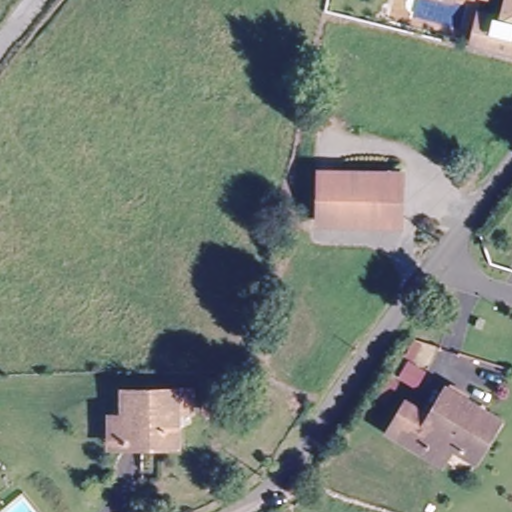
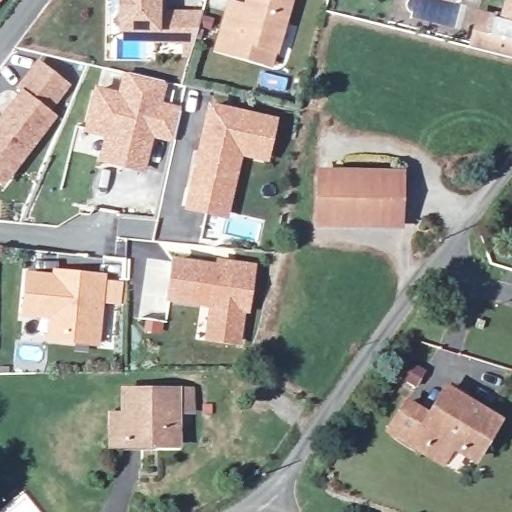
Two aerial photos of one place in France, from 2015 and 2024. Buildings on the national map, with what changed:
new [(0,2),(0,0),(2,0),(0,2)]
new [(161,11),(200,11),(189,57),(181,56),(180,41),(121,40),(121,33),(116,32),(116,0),(161,0),(161,11)]
new [(271,68),(212,53),(226,0),(228,0),(243,5),(244,0),(292,0),(271,68)]
unchanged [(429,0),(454,0),(452,5),(429,0)]
unchanged [(499,25),(505,0),(512,0),(512,59),(466,48),(473,19),(499,25)]
new [(70,85),(51,111),(56,116),(2,186),(0,184),(0,116),(20,89),(16,87),(35,60),(70,85)]
new [(167,84),(161,105),(181,109),(172,142),(152,138),(144,172),(96,161),(102,138),(83,132),(92,87),(118,91),(121,73),(167,84)]
new [(277,119),(268,164),(241,158),(228,219),(184,209),(206,102),(277,119)]
unchanged [(393,229),(373,228),(317,225),(319,176),(375,179),(396,180),(393,229)]
new [(213,263),(214,259),(256,265),(240,347),(204,342),(208,309),(165,302),(171,256),(213,263)]
new [(50,273),(51,268),(106,273),(100,344),(44,340),(46,319),(21,317),(25,272),(50,273)]
unchanged [(461,459),(443,448),(432,464),(380,430),(406,391),(429,406),(442,386),(490,416),(461,459)]
unchanged [(114,420),(129,420),(129,393),(180,392),(181,449),(130,450),(114,450),(114,420)]

